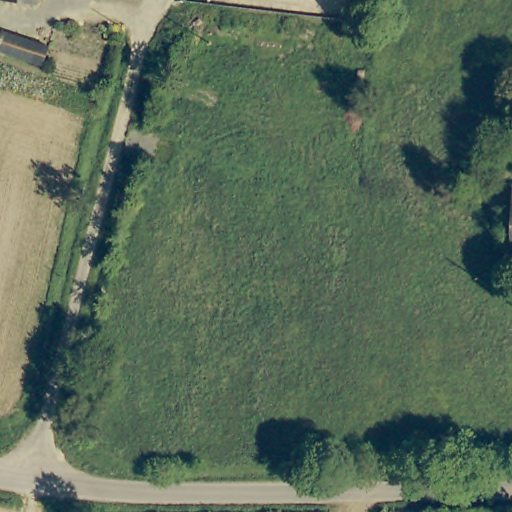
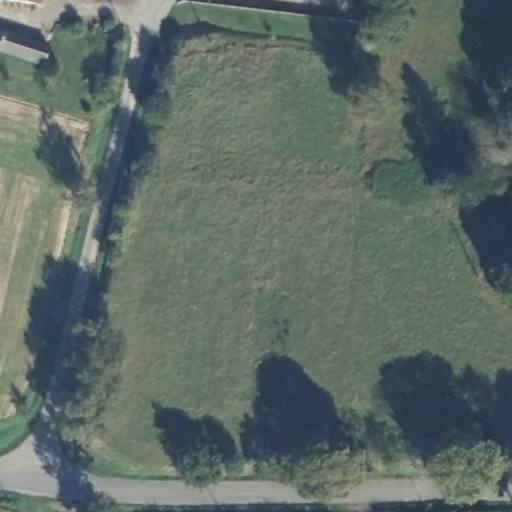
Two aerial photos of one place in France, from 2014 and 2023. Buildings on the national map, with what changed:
unchanged [(34,6),(1,1),(2,0),(35,0),(34,6)]
unchanged [(0,48),(0,32),(1,29),(47,43),(44,63),(0,48)]

